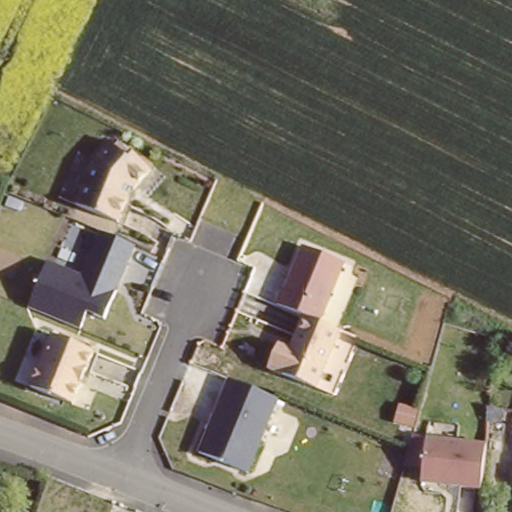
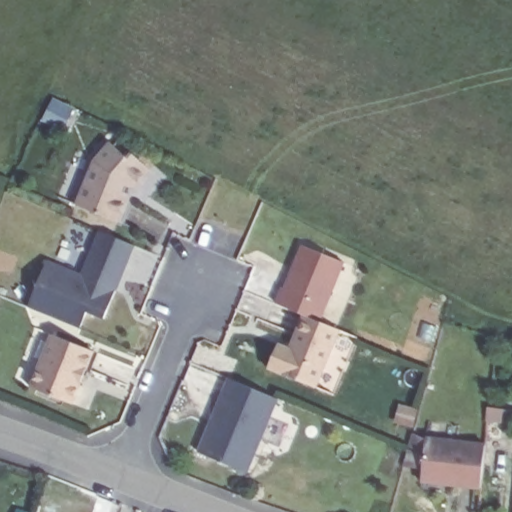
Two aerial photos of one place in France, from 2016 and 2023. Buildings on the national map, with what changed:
unchanged [(130,191),(121,222),(76,205),(90,163),(110,143),(127,157),(131,154),(151,171),(130,191)]
unchanged [(53,256),(60,259),(87,270),(95,251),(106,225),(140,240),(110,313),(93,306),(86,323),(34,302),(53,256)]
unchanged [(322,324),(302,317),(277,305),(302,246),(345,263),(322,324)]
unchanged [(322,324),(338,330),(316,389),(268,370),(277,346),(290,351),(302,317),(322,324)]
unchanged [(53,334),(95,351),(73,404),(31,387),(53,334)]
unchanged [(229,380),(278,399),(250,470),(201,450),(229,380)]
unchanged [(510,412),(509,423),(495,420),(495,409),(510,412)]
unchanged [(421,483),(422,469),(405,468),(413,434),(483,443),(478,490),(421,483)]

